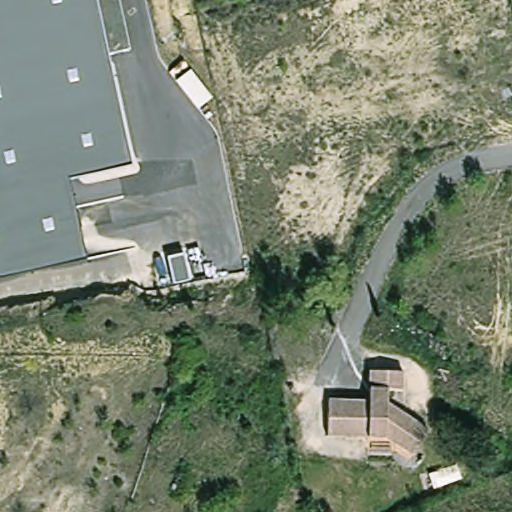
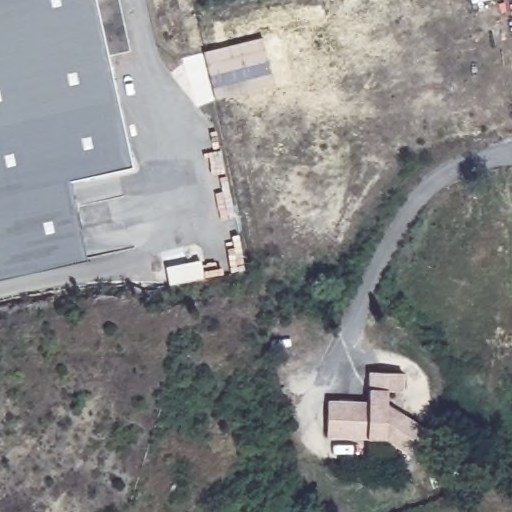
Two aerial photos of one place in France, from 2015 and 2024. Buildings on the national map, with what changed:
unchanged [(106,54),(131,166),(67,182),(84,260),(0,278),(0,0),(118,0),(129,50),(106,54)]
new [(471,0),(485,0),(472,3),(471,0)]
new [(274,85),(215,100),(203,52),(263,37),(274,85)]
unchanged [(190,280),(174,285),(166,257),(183,254),(190,280)]
unchanged [(402,445),(387,435),(328,433),(330,397),(370,399),(371,368),(403,369),(403,387),(388,387),(387,410),(402,410),(429,427),(419,443),(413,451),(402,445)]

